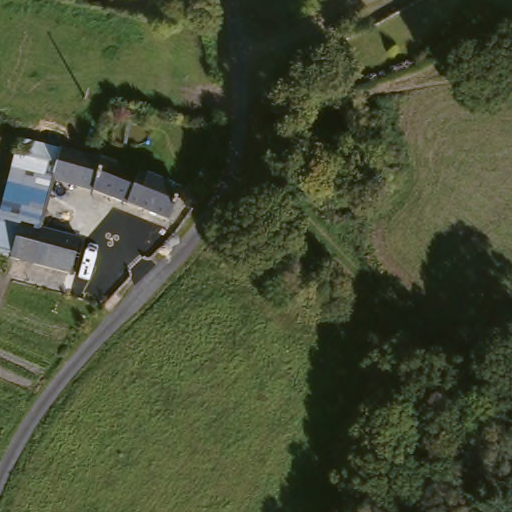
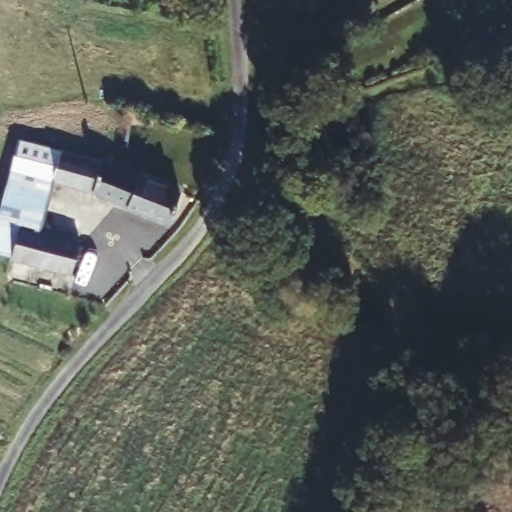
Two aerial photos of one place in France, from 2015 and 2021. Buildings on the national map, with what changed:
unchanged [(119,0),(124,0),(119,1),(119,0)]
unchanged [(183,191),(168,225),(88,190),(59,183),(48,232),(84,240),(75,276),(0,260),(0,233),(22,138),(90,152),(183,191)]

